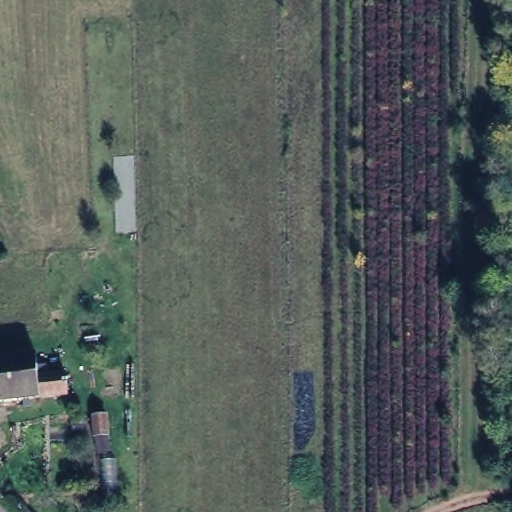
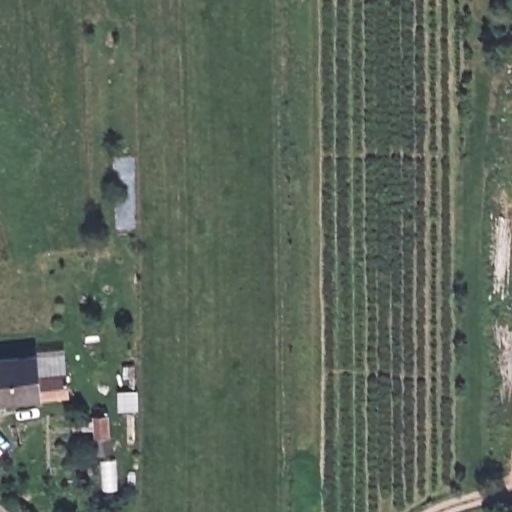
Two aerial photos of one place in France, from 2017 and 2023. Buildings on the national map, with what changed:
unchanged [(61,368),(77,367),(81,388),(0,397),(0,354),(58,348),(61,368)]

